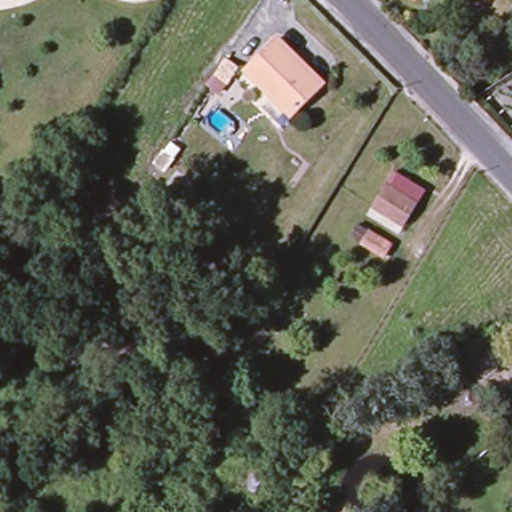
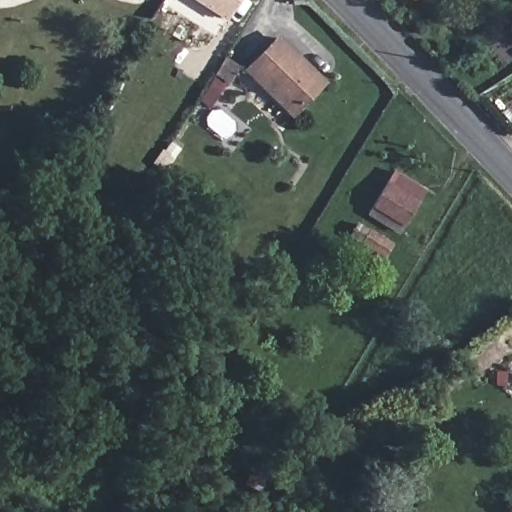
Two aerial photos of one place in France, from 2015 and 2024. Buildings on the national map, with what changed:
new [(192,0),(241,0),(227,22),(192,0)]
unchanged [(405,0),(412,0),(409,4),(405,0)]
unchanged [(293,123),(248,77),(281,46),(327,92),(293,123)]
unchanged [(404,231),(373,211),(387,189),(420,207),(404,231)]
unchanged [(384,264),(349,244),(356,235),(363,240),(367,237),(390,251),(384,264)]

